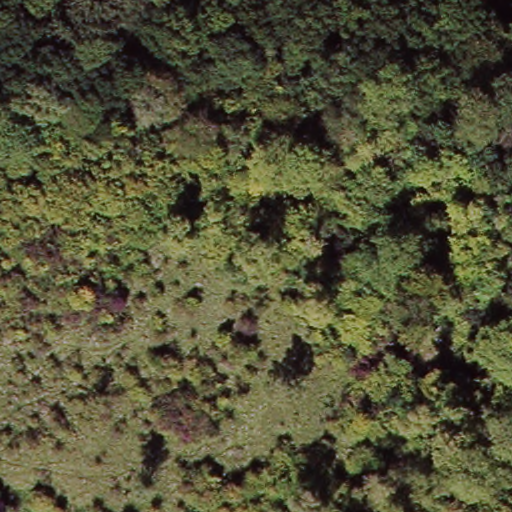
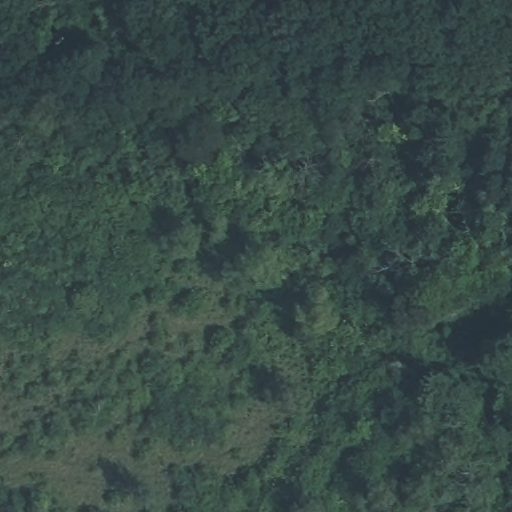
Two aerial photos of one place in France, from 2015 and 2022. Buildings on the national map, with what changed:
[]

